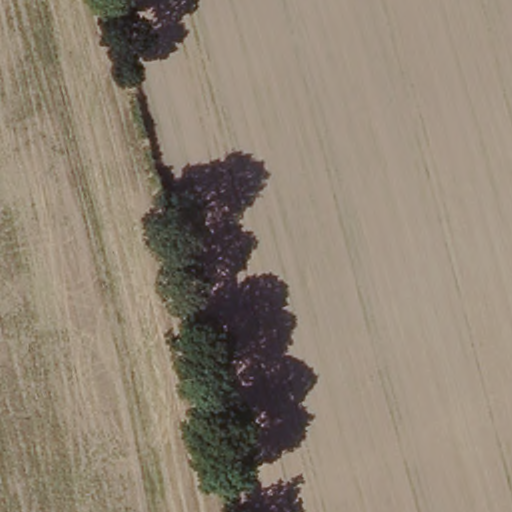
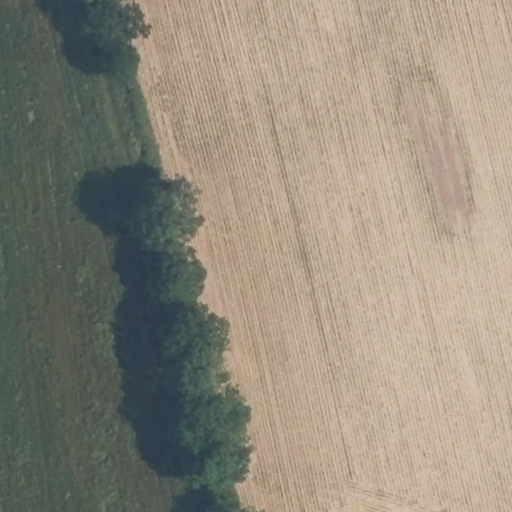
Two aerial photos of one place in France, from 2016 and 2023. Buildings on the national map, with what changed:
[]

